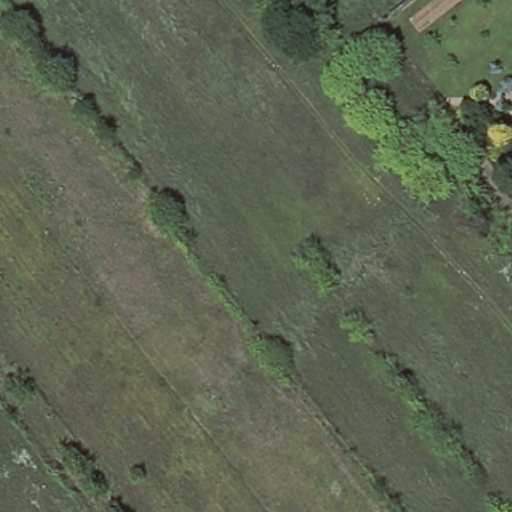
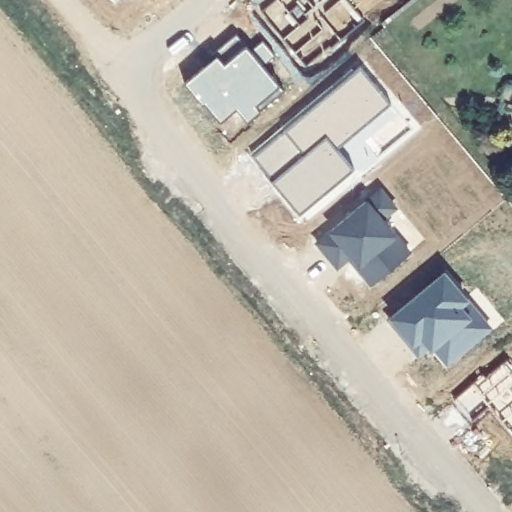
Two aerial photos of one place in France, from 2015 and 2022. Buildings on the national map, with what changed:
new [(347,0),(366,23),(307,68),(263,12),(277,0),(347,0)]
new [(211,59),(218,65),(240,48),(276,90),(240,121),(232,115),(212,127),(182,86),(211,59)]
new [(357,71),(387,106),(339,150),(354,166),(296,213),(247,161),(357,71)]
new [(362,205),(375,221),(390,208),(421,244),(370,289),(326,236),(362,205)]
new [(440,265),(473,309),(409,368),(373,319),(440,265)]
new [(504,360),(512,369),(512,440),(488,413),(472,428),(450,401),(504,360)]

